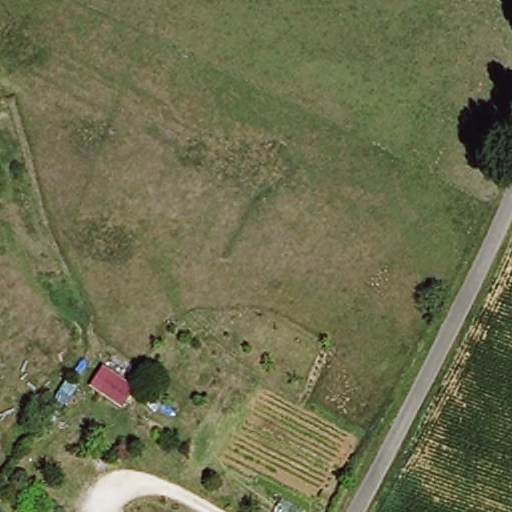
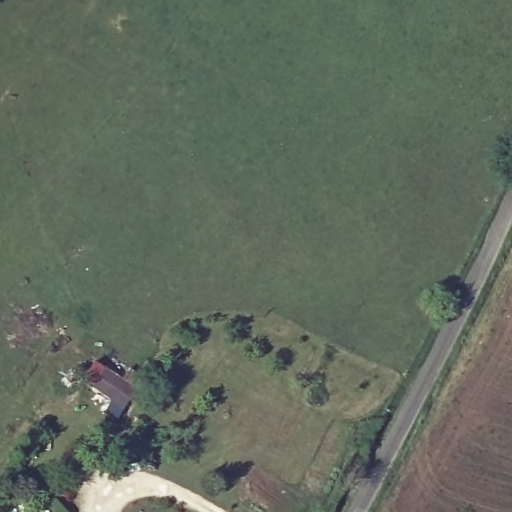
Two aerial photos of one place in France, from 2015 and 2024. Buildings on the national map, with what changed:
[]

